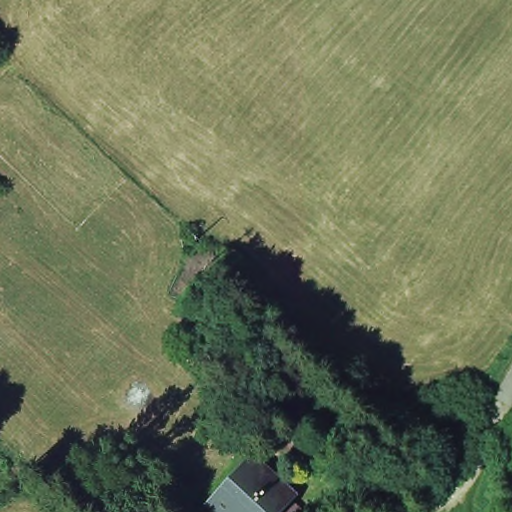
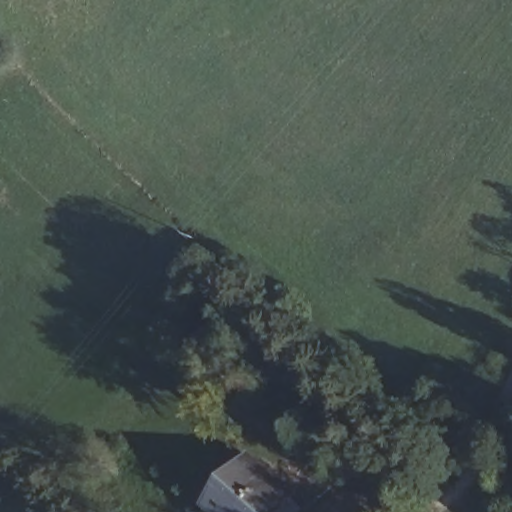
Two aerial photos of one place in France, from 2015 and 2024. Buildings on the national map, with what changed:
unchanged [(206,497),(221,481),(226,484),(248,460),(283,491),(296,503),(288,512),(222,512),(206,497)]

